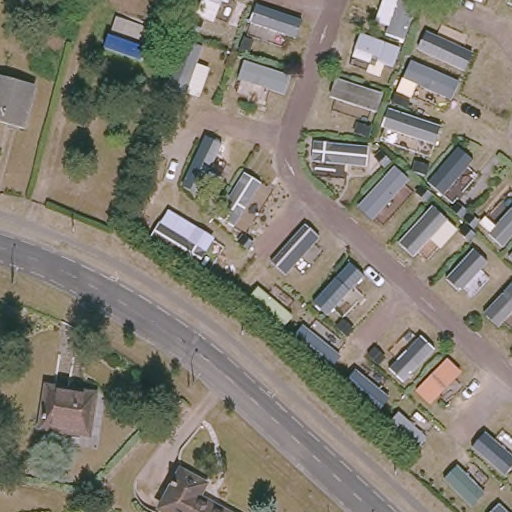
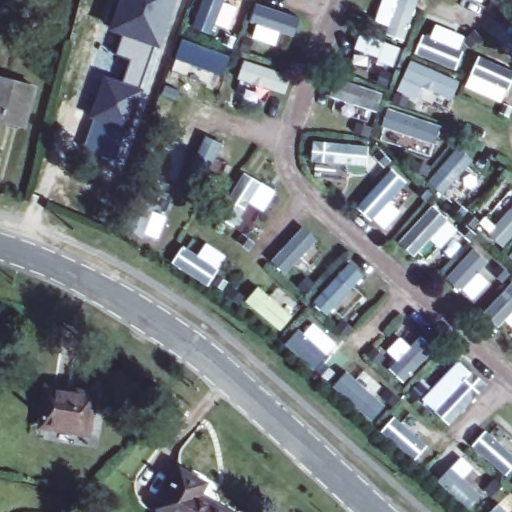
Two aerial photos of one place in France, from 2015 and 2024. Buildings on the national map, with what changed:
new [(95,117),(107,81),(122,86),(127,73),(131,74),(135,63),(116,56),(125,30),(116,28),(112,19),(116,5),(126,1),(127,0),(171,0),(127,128),(95,117)]
demolished [(110,14),(157,25),(148,59),(102,46),(110,14)]
unchanged [(22,129),(0,123),(0,79),(32,87),(22,129)]
unchanged [(90,398),(85,437),(39,429),(44,391),(90,398)]
unchanged [(158,499),(186,467),(208,486),(199,497),(215,512),(173,512),(158,499)]

